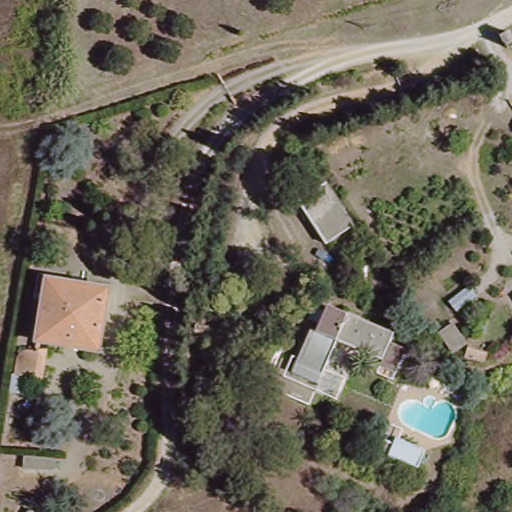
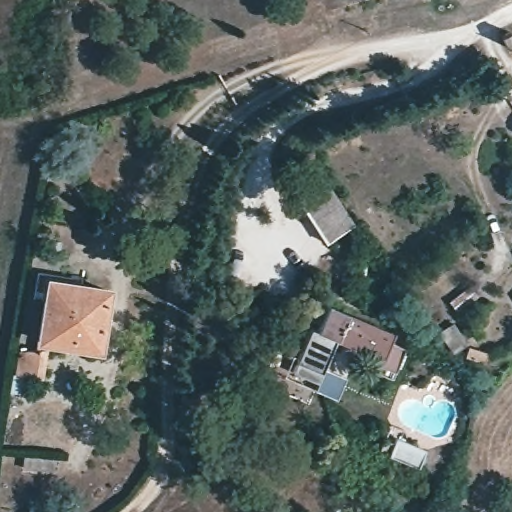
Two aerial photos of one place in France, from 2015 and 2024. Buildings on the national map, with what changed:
unchanged [(323,246),(296,201),(330,183),(359,229),(323,246)]
unchanged [(16,345),(28,348),(38,283),(106,291),(100,359),(46,352),(40,404),(7,394),(16,345)]
unchanged [(295,377),(314,332),(320,335),(330,311),(393,336),(383,363),(336,344),(318,386),(295,377)]
unchanged [(394,436),(428,454),(418,475),(385,462),(394,436)]

